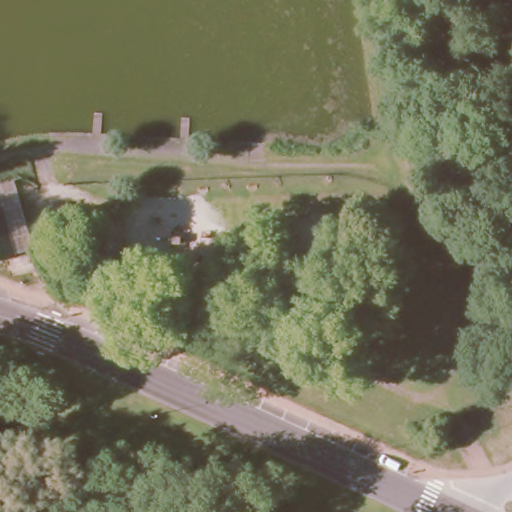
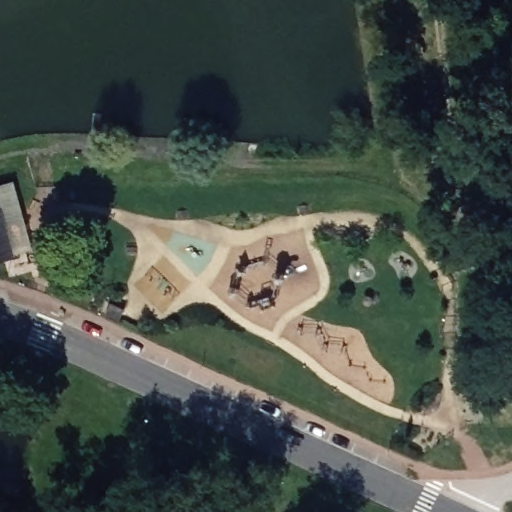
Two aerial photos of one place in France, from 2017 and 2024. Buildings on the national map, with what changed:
unchanged [(16,180),(32,255),(0,263),(0,184),(16,180)]

